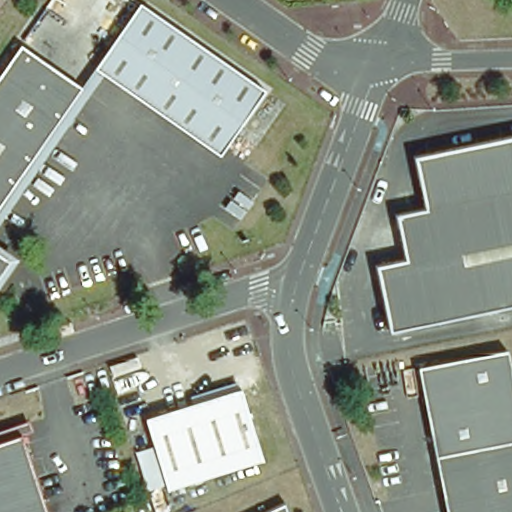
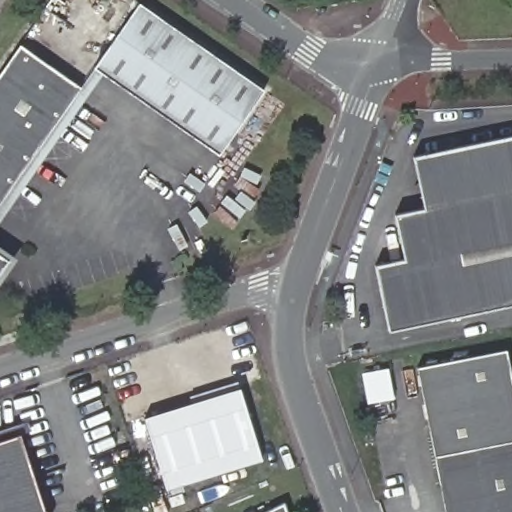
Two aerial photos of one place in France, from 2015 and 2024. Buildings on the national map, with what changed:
unchanged [(0,6),(0,0),(4,0),(0,6)]
unchanged [(140,7),(261,93),(215,158),(101,78),(94,72),(140,7)]
unchanged [(22,44),(81,91),(0,206),(0,76),(22,44)]
unchanged [(81,91),(94,72),(101,78),(0,221),(0,206),(81,91)]
unchanged [(512,309),(388,334),(375,268),(405,262),(395,218),(425,212),(415,160),(512,141),(512,309)]
unchanged [(10,258),(0,273),(0,251),(10,258)]
unchanged [(418,368),(508,351),(512,372),(512,512),(446,512),(435,457),(418,368)]
unchanged [(145,423),(240,392),(262,464),(167,495),(145,423)]
unchanged [(36,434),(20,439),(46,512),(0,512),(0,431),(31,421),(36,434)]
unchanged [(288,512),(275,512),(286,506),(288,512)]

